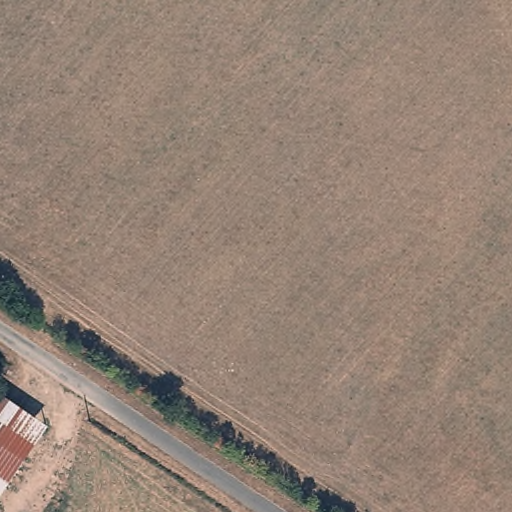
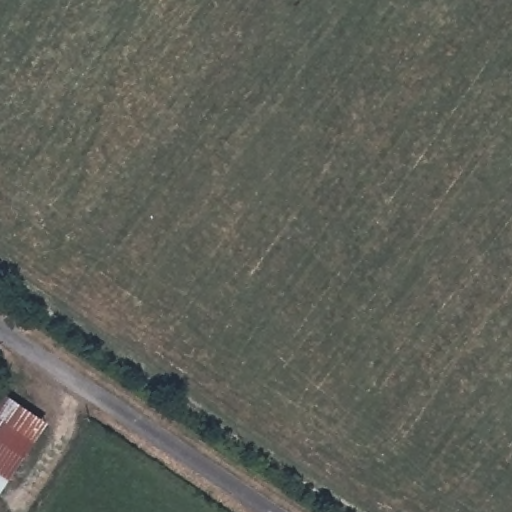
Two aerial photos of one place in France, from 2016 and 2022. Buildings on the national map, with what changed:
unchanged [(0,504),(0,394),(51,427),(0,504)]

